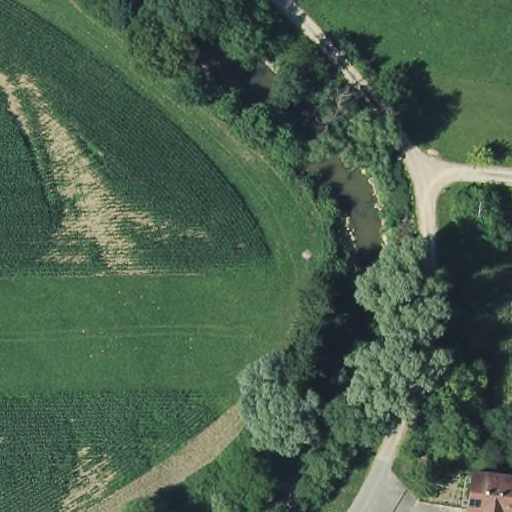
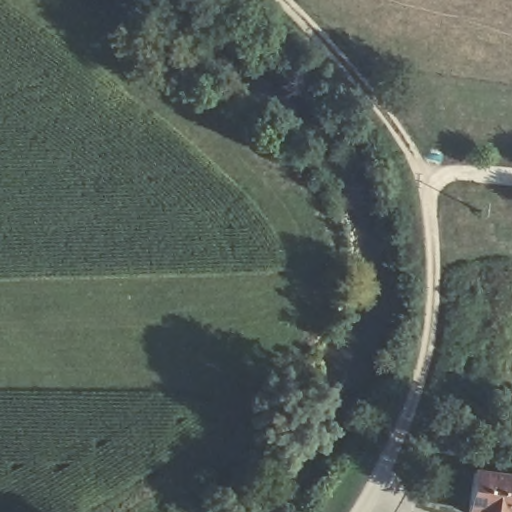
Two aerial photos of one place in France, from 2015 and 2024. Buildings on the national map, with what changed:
unchanged [(512,477),(512,512),(462,512),(467,472),(512,477)]

